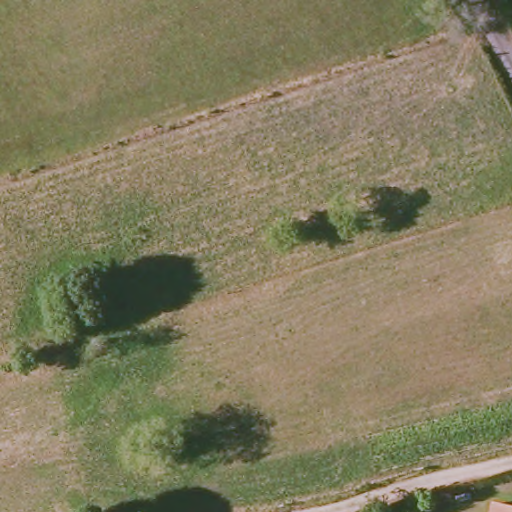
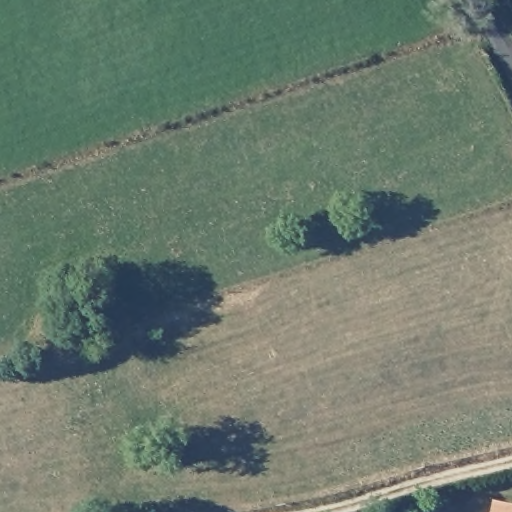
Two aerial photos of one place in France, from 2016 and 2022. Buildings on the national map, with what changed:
unchanged [(500,501),(512,504),(512,512),(497,512),(500,501)]

